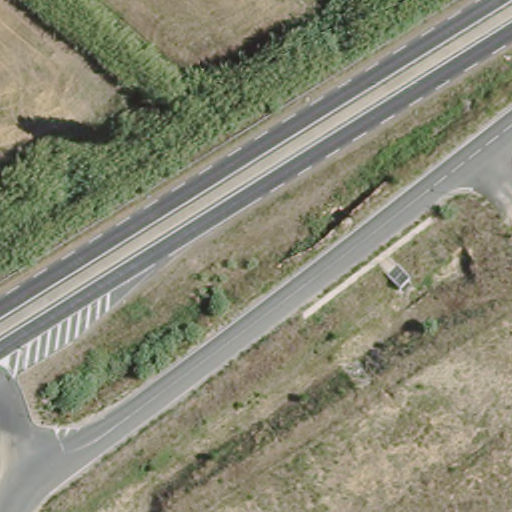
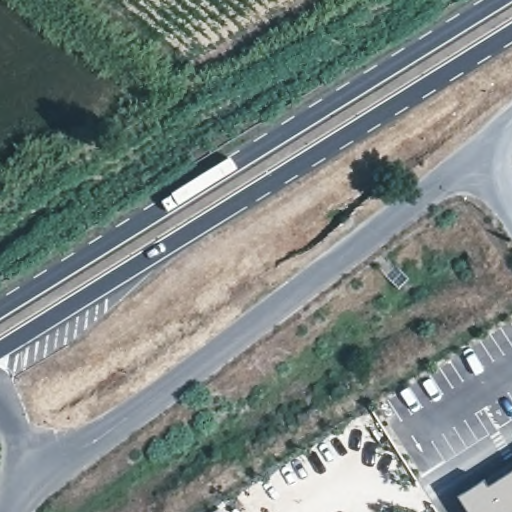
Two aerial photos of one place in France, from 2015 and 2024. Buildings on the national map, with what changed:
new [(484,482),(487,487),(512,471),(512,512),(468,512),(458,497),(484,482)]

